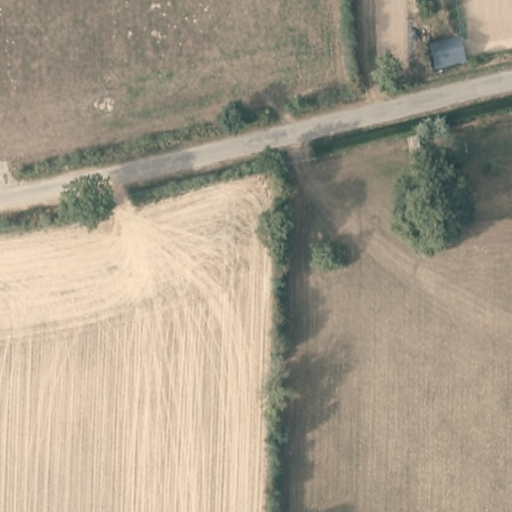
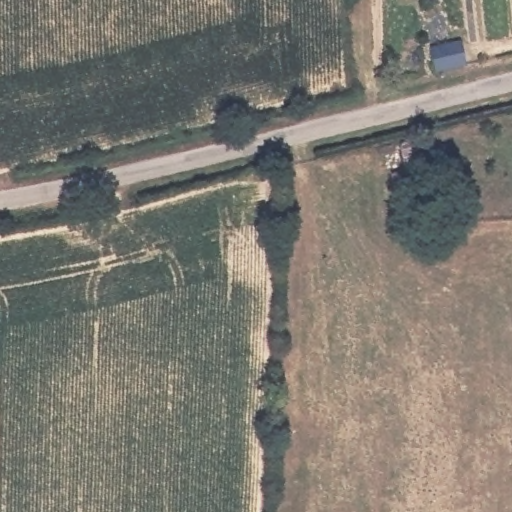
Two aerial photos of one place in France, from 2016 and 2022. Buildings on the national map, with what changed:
unchanged [(473,63),(436,72),(432,45),(468,35),(473,63)]

